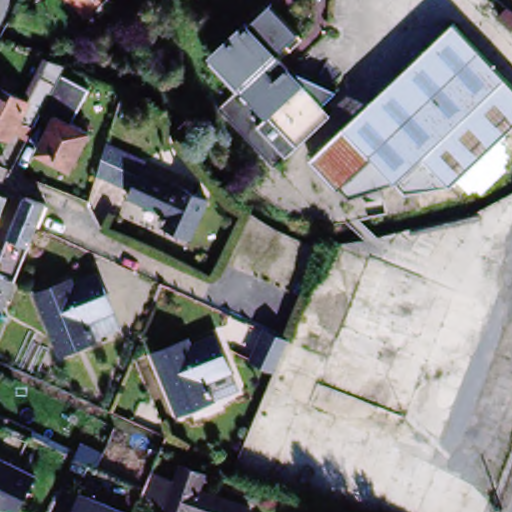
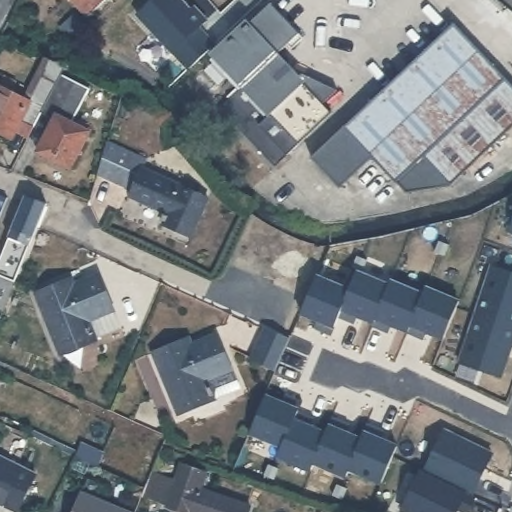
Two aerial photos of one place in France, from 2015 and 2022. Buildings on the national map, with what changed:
unchanged [(91,21),(72,0),(112,0),(91,21)]
new [(189,69),(137,16),(154,0),(179,0),(190,13),(194,9),(207,23),(199,31),(214,47),(189,69)]
unchanged [(325,101),(334,110),(301,142),(244,83),(217,56),(272,2),(305,36),(283,58),(291,67),(338,89),(325,101)]
unchanged [(512,21),(505,15),(511,8),(512,8),(512,21)]
unchanged [(345,187),(342,190),(312,160),(452,22),(512,83),(512,128),(507,133),(461,177),(453,186),(402,134),(345,187)]
unchanged [(27,132),(16,126),(7,143),(0,139),(0,91),(22,103),(43,62),(48,64),(60,69),(27,132)]
unchanged [(74,160),(67,173),(35,156),(52,123),(41,117),(52,94),(54,94),(61,79),(76,87),(69,102),(67,101),(57,121),(86,135),(74,160)]
unchanged [(276,166),(219,107),(244,83),(301,142),(276,166)]
demolished [(512,137),(512,164),(480,196),(461,177),(507,133),(512,137)]
unchanged [(410,194),(397,185),(356,199),(345,187),(402,134),(453,186),(410,194)]
unchanged [(146,157),(142,167),(135,182),(134,186),(101,171),(111,144),(112,142),(146,157)]
unchanged [(206,195),(190,235),(162,224),(167,213),(130,196),(134,186),(135,182),(142,167),(206,195)]
unchanged [(7,199),(0,218),(0,196),(7,199)]
unchanged [(0,307),(0,267),(26,198),(46,205),(46,206),(36,231),(15,283),(5,310),(0,307)]
new [(512,229),(507,228),(512,212),(512,229)]
new [(445,258),(440,256),(435,254),(439,242),(444,244),(449,246),(445,258)]
new [(360,271),(355,269),(350,267),(355,255),(360,257),(365,259),(360,271)]
new [(512,268),(512,321),(474,309),(490,261),(512,268)]
new [(346,320),(337,316),(348,289),(347,289),(355,271),(387,285),(372,321),(356,315),(352,323),(346,320)]
new [(348,289),(337,316),(330,334),(320,330),(322,322),(299,313),(314,275),(348,289)]
unchanged [(94,339),(61,350),(40,288),(72,277),(76,286),(102,276),(115,311),(121,329),(94,339)]
new [(381,329),(370,325),(372,321),(387,285),(389,280),(421,294),(406,330),(390,324),(386,332),(381,329)]
new [(415,336),(405,332),(406,330),(421,294),(423,286),(456,300),(441,337),(425,330),(421,339),(415,336)]
new [(512,321),(512,334),(500,370),(459,357),(474,309),(512,321)]
unchanged [(281,357),(275,372),(250,362),(263,328),(288,338),(281,357)]
unchanged [(216,400),(181,415),(155,356),(190,340),(194,347),(219,336),(234,369),(242,389),(216,400)]
new [(288,405),(281,402),(285,393),(291,396),(302,401),(298,408),(283,445),(250,431),(265,395),(288,405)]
new [(307,414),(313,417),(310,425),(304,422),(326,432),(311,469),(278,455),(294,419),(297,411),(307,414)]
new [(342,420),(349,423),(346,431),(361,437),(346,474),(313,461),(332,416),(342,420)]
new [(383,480),(348,468),(366,422),(377,426),(375,434),(398,443),(383,480)]
new [(377,426),(384,429),(381,437),(375,434),(377,426)]
new [(471,494),(424,472),(443,430),(491,453),(471,494)]
unchanged [(42,471),(24,509),(0,497),(0,450),(42,471)]
unchanged [(181,487),(187,469),(212,478),(207,490),(200,512),(180,512),(173,510),(150,502),(159,479),(181,487)]
new [(467,493),(475,498),(469,512),(462,512),(457,509),(456,512),(401,512),(420,470),(467,493)]
unchanged [(255,512),(200,512),(207,490),(256,507),(255,512)]
unchanged [(132,512),(78,512),(86,493),(132,512)]

